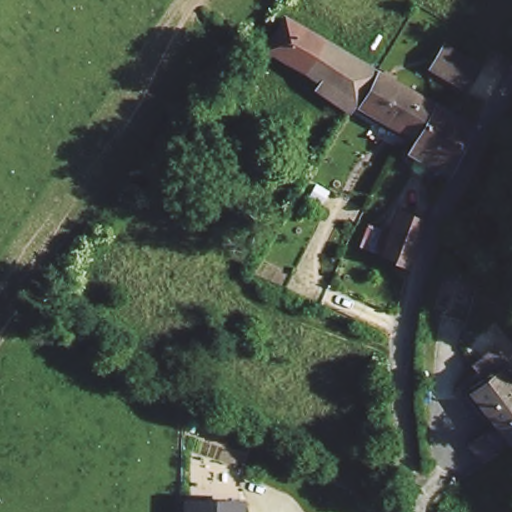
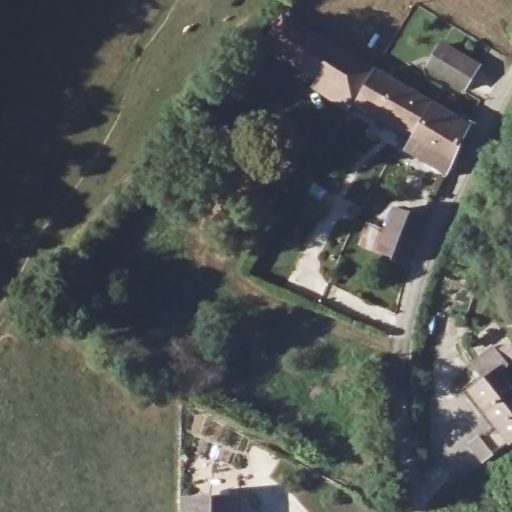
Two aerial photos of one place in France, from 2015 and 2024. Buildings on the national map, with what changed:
unchanged [(307,75),(261,51),(268,37),(277,41),(287,24),(339,53),(350,59),(377,75),(357,109),(307,75)]
unchanged [(445,50),(480,71),(469,92),(431,71),(445,50)]
unchanged [(417,136),(363,105),(380,76),(432,105),(417,136)]
unchanged [(472,128),(459,165),(459,167),(414,143),(417,136),(432,105),(472,128)]
unchanged [(412,266),(362,243),(369,227),(390,236),(400,211),(427,224),(412,266)]
unchanged [(472,372),(463,360),(487,340),(510,359),(503,368),(512,380),(512,427),(506,431),(465,378),(472,372)]
unchanged [(466,433),(482,421),(495,437),(477,449),(466,433)]
unchanged [(235,502),(235,510),(235,512),(190,512),(190,500),(235,502)]

